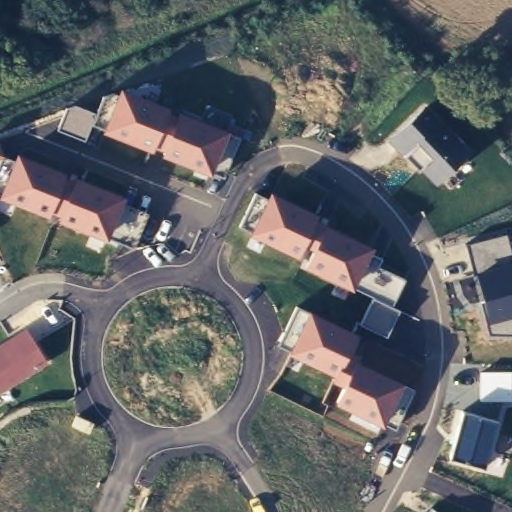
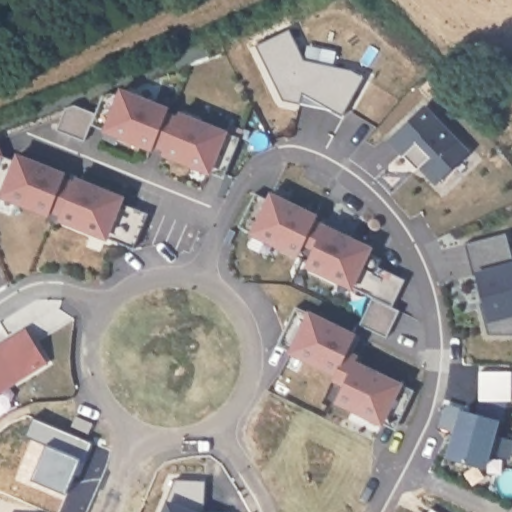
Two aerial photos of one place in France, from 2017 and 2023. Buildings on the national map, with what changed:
new [(342,114),(302,91),(299,101),(284,97),(257,43),(290,28),(304,58),(353,68),(364,75),(342,114)]
unchanged [(212,171),(212,175),(102,131),(104,127),(92,124),(85,140),(58,129),(67,108),(76,104),(97,111),(104,95),(112,91),(119,92),(121,85),(239,136),(224,178),(212,171)]
unchanged [(425,103),(471,151),(437,185),(422,166),(419,169),(405,154),(401,156),(387,140),(425,103)]
unchanged [(108,240),(0,197),(0,191),(0,163),(1,160),(0,158),(0,140),(5,155),(15,157),(17,152),(127,196),(125,200),(149,211),(135,247),(110,235),(108,240)]
unchanged [(361,323),(374,297),(356,285),(354,291),(305,266),(312,249),(305,246),(299,257),(251,235),(253,229),(241,226),(256,192),(268,196),(270,192),(318,214),(317,218),(374,245),(371,252),(382,259),(378,267),(406,280),(392,306),(400,310),(387,336),(361,323)]
unchanged [(465,242),(507,231),(512,252),(512,335),(488,334),(465,242)]
unchanged [(385,422),(384,426),(334,401),(341,385),(332,380),(334,375),(288,353),(291,348),(278,344),(298,306),(357,334),(351,349),(360,354),(357,360),(414,389),(396,429),(385,422)]
unchanged [(0,342),(25,326),(48,364),(0,395),(0,342)]
unchanged [(484,469),(447,458),(461,410),(497,420),(484,469)]
new [(93,442),(85,461),(81,460),(67,494),(31,479),(46,444),(25,435),(33,417),(93,442)]
unchanged [(435,512),(428,512),(431,509),(435,512)]

